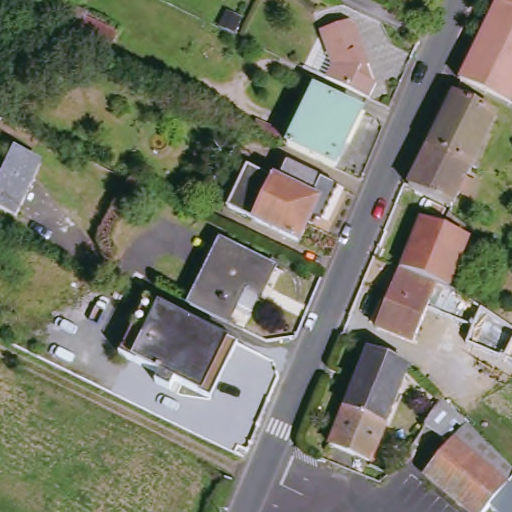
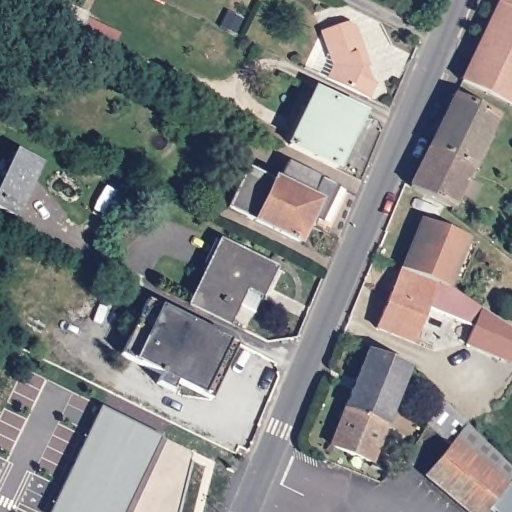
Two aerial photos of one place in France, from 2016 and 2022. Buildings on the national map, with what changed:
unchanged [(472,59),(500,0),(507,0),(512,5),(512,81),(471,61),(472,59)]
unchanged [(512,0),(512,5),(507,0),(512,0)]
unchanged [(70,7),(88,15),(87,17),(120,32),(110,55),(58,31),(70,7)]
unchanged [(340,85),(330,81),(337,67),(325,34),(352,24),(359,27),(373,67),(365,70),(362,77),(380,85),(373,101),(340,85)]
unchanged [(512,101),(508,110),(475,93),(463,81),(462,80),(471,61),(512,81),(512,101)]
unchanged [(312,153),(296,146),(292,143),(317,91),(338,100),(312,153)]
unchanged [(494,120),(471,168),(429,146),(452,97),(494,120)]
unchanged [(339,99),(365,111),(340,166),(312,153),(338,100),(339,99)]
unchanged [(263,120),(290,134),(287,141),(260,127),(263,120)]
unchanged [(450,212),(444,222),(417,208),(425,194),(411,187),(429,146),(471,168),(452,209),(448,211),(450,212)]
unchanged [(15,216),(0,208),(0,183),(15,153),(38,165),(15,216)]
unchanged [(280,182),(282,184),(291,165),(341,189),(323,225),(315,221),(303,246),(258,224),(280,182)]
unchanged [(258,224),(258,225),(227,210),(247,168),(280,182),(258,224)]
unchanged [(438,283),(427,311),(414,342),(374,325),(422,220),(470,241),(479,245),(465,280),(455,276),(450,288),(438,283)]
unchanged [(267,285),(251,278),(230,322),(191,302),(222,241),(275,267),(267,285)]
new [(470,345),(476,328),(427,311),(438,283),(450,288),(460,296),(512,329),(512,362),(507,360),(470,345)]
unchanged [(215,398),(180,381),(175,390),(160,382),(165,373),(125,353),(150,300),(241,345),(215,398)]
unchanged [(372,463),(328,445),(367,352),(409,369),(372,463)]
unchanged [(432,426),(450,403),(512,466),(512,493),(496,511),(496,512),(470,512),(432,480),(456,449),(433,427),(432,426)]
new [(102,407),(162,436),(125,512),(51,512),(102,407)]
unchanged [(496,511),(512,493),(512,512),(496,512),(496,511)]

